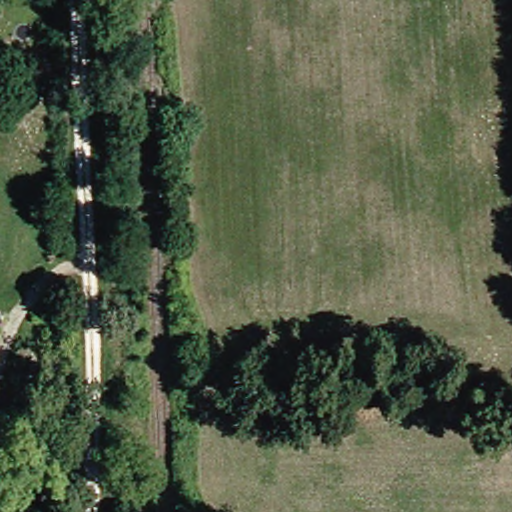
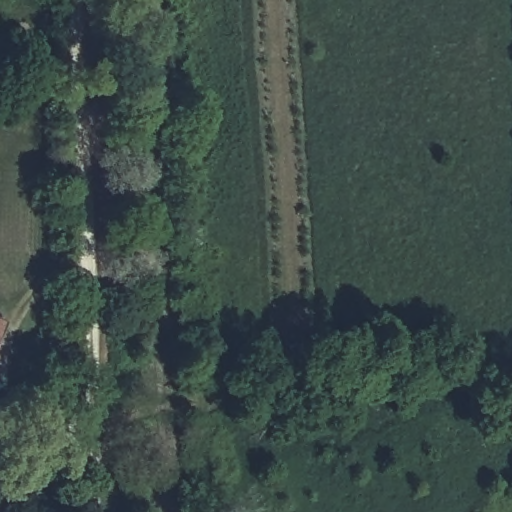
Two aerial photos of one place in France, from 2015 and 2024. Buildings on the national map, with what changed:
unchanged [(0,341),(0,325),(5,327),(0,341)]

